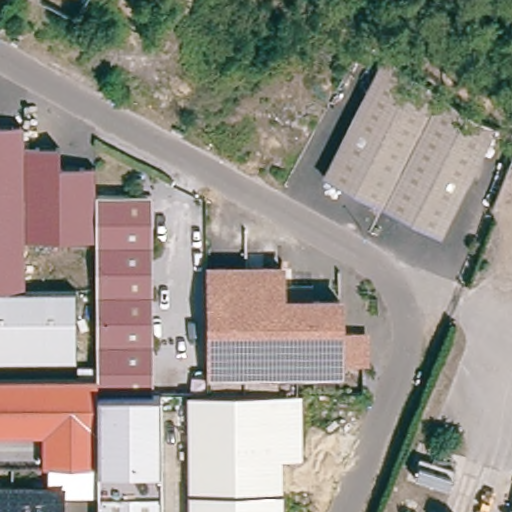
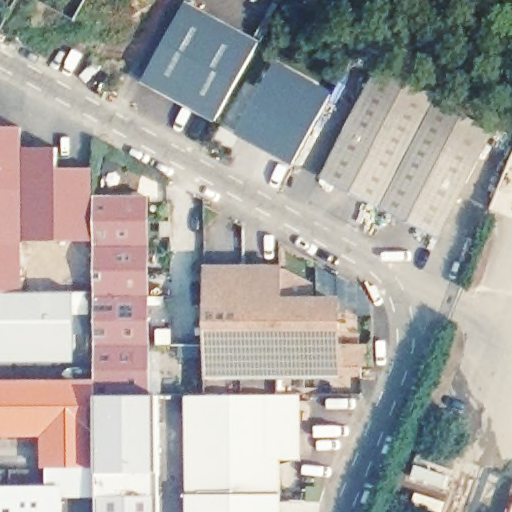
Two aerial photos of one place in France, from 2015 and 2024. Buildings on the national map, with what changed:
demolished [(27,0),(83,0),(70,23),(27,0)]
new [(218,121),(144,82),(188,1),(261,42),(218,121)]
unchanged [(382,204),(325,173),(387,56),(438,91),(382,204)]
new [(237,134),(277,60),(333,91),(293,164),(237,134)]
unchanged [(470,114),(472,115),(474,116),(481,119),(497,126),(440,234),(382,204),(438,91),(470,114)]
unchanged [(76,290),(0,290),(0,125),(22,125),(22,146),(59,146),(59,167),(94,167),(94,193),(96,290),(76,290)]
unchanged [(94,193),(146,192),(149,393),(97,393),(97,378),(96,290),(94,193)]
unchanged [(285,268),(284,301),(342,302),(341,375),(208,372),(209,322),(209,267),(285,268)]
unchanged [(0,350),(0,290),(76,290),(76,350),(0,350)]
unchanged [(341,329),(370,332),(370,365),(341,363),(341,329)]
unchanged [(47,434),(0,434),(0,378),(97,378),(97,393),(98,466),(46,466),(47,434)]
unchanged [(301,392),(303,458),(283,459),(283,512),(188,512),(186,395),(301,392)]
unchanged [(161,512),(99,512),(98,466),(97,393),(149,393),(160,393),(161,512)]
unchanged [(450,472),(444,490),(408,479),(415,461),(450,472)]
unchanged [(92,466),(93,496),(61,494),(61,487),(47,487),(46,466),(92,466)]
unchanged [(0,487),(61,487),(61,512),(0,512),(0,487)]

